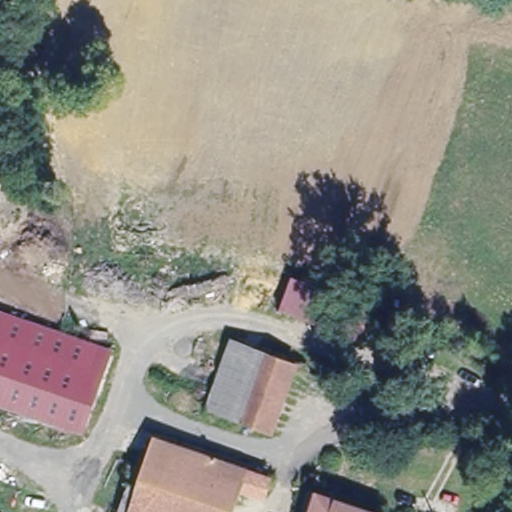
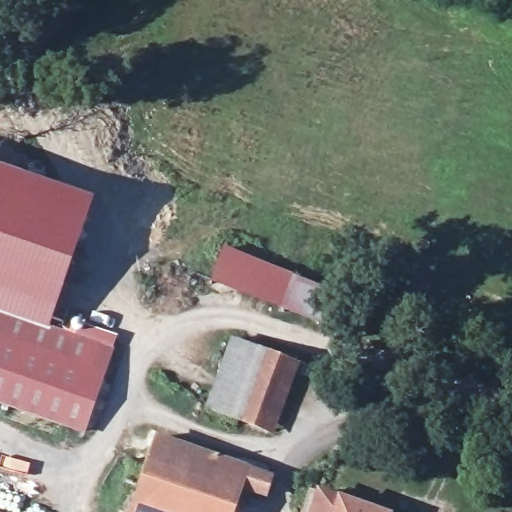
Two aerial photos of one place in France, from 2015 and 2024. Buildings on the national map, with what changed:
new [(0,318),(0,169),(93,200),(47,334),(0,318)]
new [(69,212),(61,242),(9,229),(19,199),(69,212)]
unchanged [(216,287),(228,254),(304,278),(292,312),(216,287)]
unchanged [(108,355),(80,436),(0,408),(0,318),(108,355)]
unchanged [(234,413),(207,404),(224,351),(231,335),(259,345),(234,413)]
unchanged [(293,357),(268,426),(234,413),(259,345),(293,357)]
unchanged [(239,480),(229,512),(130,512),(151,432),(270,471),(265,489),(239,480)]
unchanged [(391,511),(391,512),(311,512),(320,487),(391,511)]

